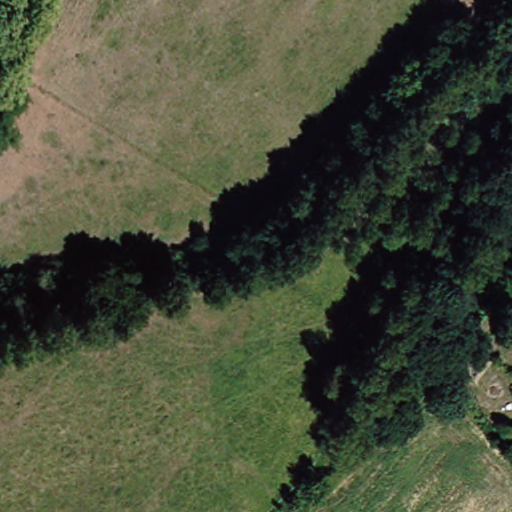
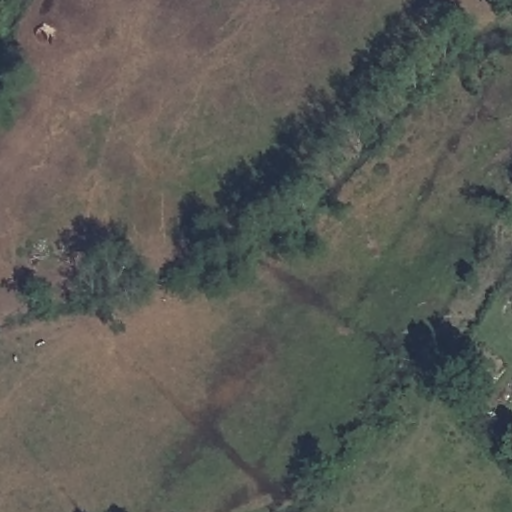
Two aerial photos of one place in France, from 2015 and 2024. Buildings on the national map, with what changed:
[]

